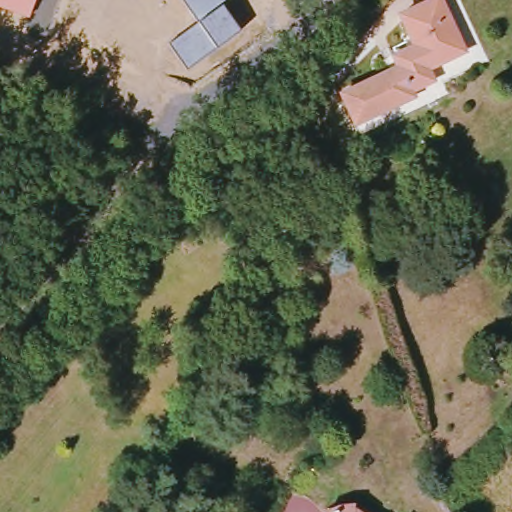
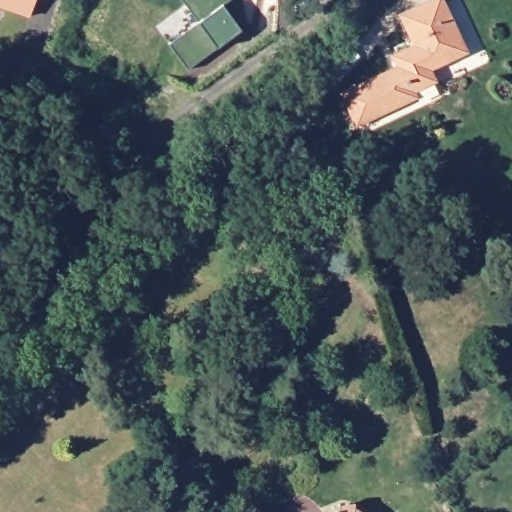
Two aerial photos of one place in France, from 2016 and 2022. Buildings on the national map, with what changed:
unchanged [(0,7),(0,0),(36,0),(30,18),(0,7)]
unchanged [(240,30),(217,46),(187,69),(168,44),(198,21),(182,0),(231,0),(222,6),(240,30)]
unchanged [(417,49),(401,19),(436,0),(437,0),(463,53),(428,72),(405,85),(400,73),(394,61),(417,49)]
unchanged [(405,85),(428,72),(433,85),(412,96),(415,102),(358,131),(343,100),(400,73),(405,85)]
unchanged [(343,507),(356,512),(331,512),(343,507)]
unchanged [(360,508),(367,512),(357,512),(360,508)]

